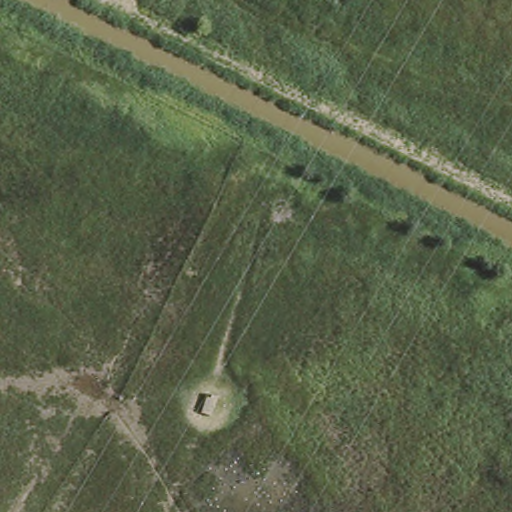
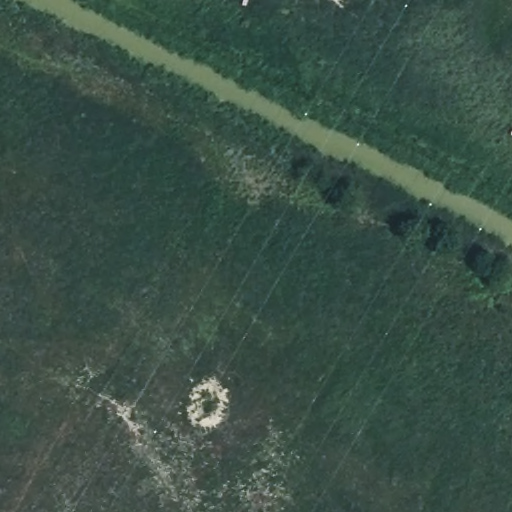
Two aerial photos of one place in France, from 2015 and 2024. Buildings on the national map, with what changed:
unchanged [(217,397),(210,414),(198,409),(205,390),(217,397)]

